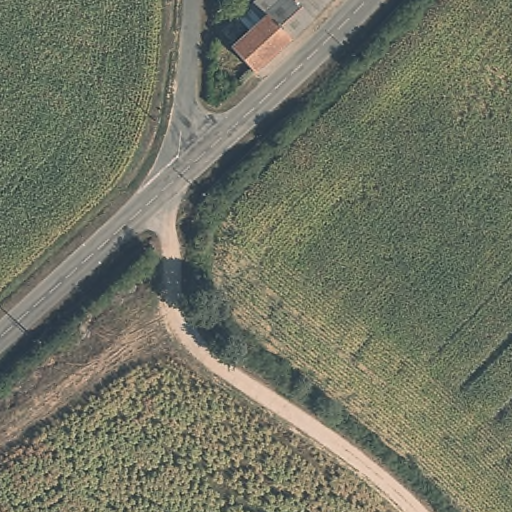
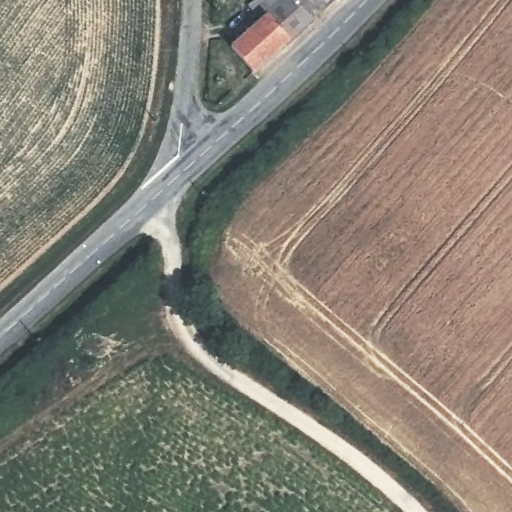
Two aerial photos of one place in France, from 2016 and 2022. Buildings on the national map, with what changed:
unchanged [(252,73),(229,46),(259,17),(249,7),(256,0),(333,0),(329,4),(252,73)]

